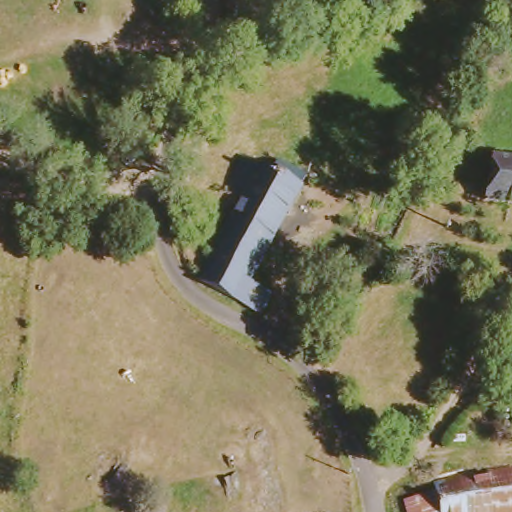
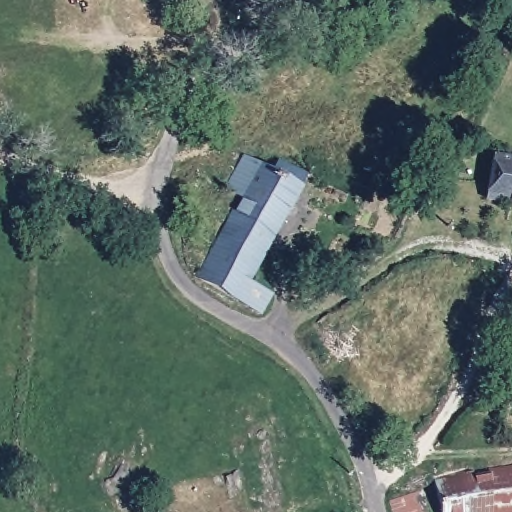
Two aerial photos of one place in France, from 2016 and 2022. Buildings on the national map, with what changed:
unchanged [(267,324),(202,285),(200,281),(232,219),(240,224),(249,208),(232,192),(247,161),(265,169),(272,154),(313,176),(311,179),(252,289),(285,310),(267,324)]
unchanged [(501,209),(507,162),(512,162),(512,210),(501,209)]
unchanged [(412,504),(442,498),(439,489),(512,472),(512,512),(413,512),(412,504)]

